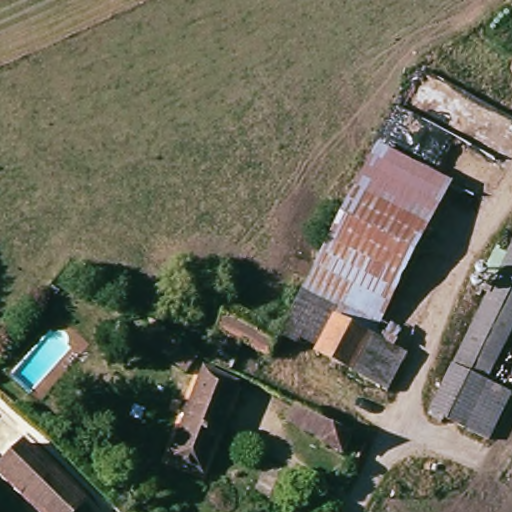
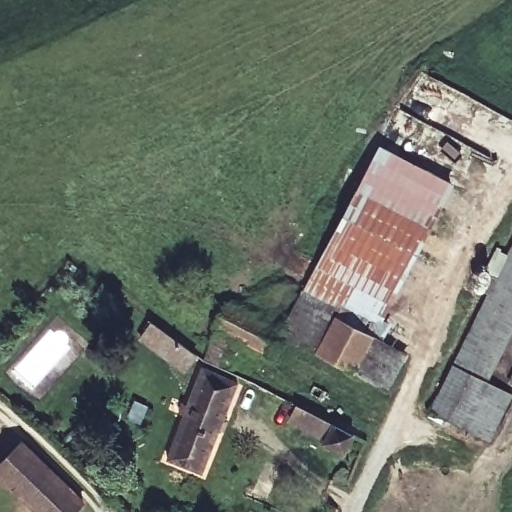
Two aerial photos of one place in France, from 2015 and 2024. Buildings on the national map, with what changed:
unchanged [(372,156),(445,192),(387,310),(350,293),(345,304),(309,287),(372,156)]
unchanged [(429,410),(512,248),(512,331),(489,377),(512,388),(512,399),(490,442),(429,410)]
unchanged [(372,423),(298,384),(313,354),(280,337),(269,358),(240,345),(227,372),(202,362),(215,333),(226,302),(281,330),(302,292),(382,321),(402,331),(395,346),(407,354),(388,387),(372,423)]
unchanged [(153,352),(140,343),(152,325),(166,334),(193,352),(181,371),(153,352)]
unchanged [(167,459),(202,366),(237,380),(198,472),(167,459)]
unchanged [(346,431),(337,448),(297,426),(305,411),(346,431)]
unchanged [(78,506),(74,512),(35,512),(0,478),(0,474),(22,448),(78,506)]

